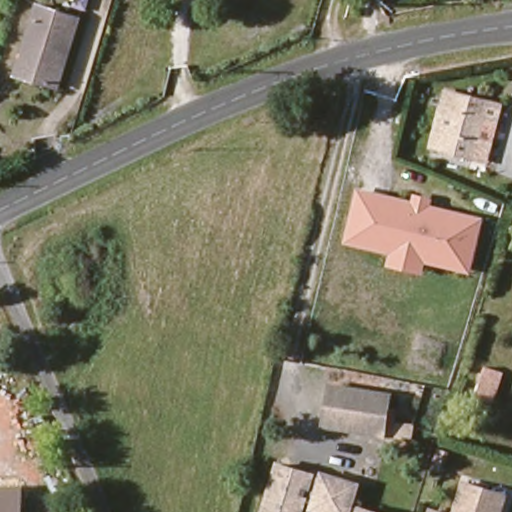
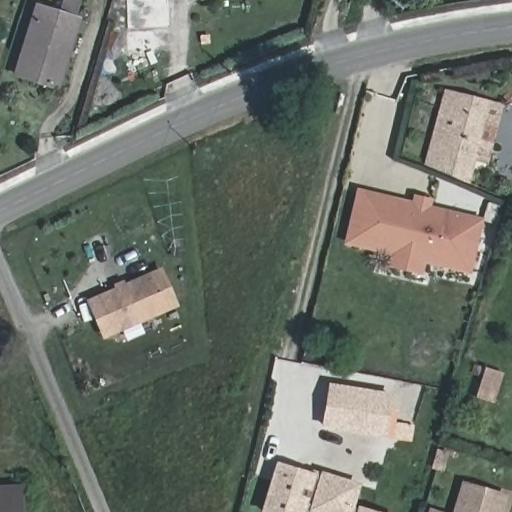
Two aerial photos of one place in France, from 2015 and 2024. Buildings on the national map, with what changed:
unchanged [(59,85),(17,71),(40,6),(81,19),(59,85)]
unchanged [(481,161),(469,158),(426,145),(442,86),(486,98),(498,101),(481,161)]
unchanged [(473,275),(426,264),(423,275),(387,268),(390,256),(346,245),(358,189),(413,202),(415,193),(436,199),(433,207),(486,219),(473,275)]
new [(163,269),(177,303),(107,334),(92,300),(163,269)]
unchanged [(494,406),(475,400),(486,367),(506,372),(494,406)]
unchanged [(382,434),(323,422),(331,383),(390,395),(387,409),(394,411),(389,436),(382,434)]
unchanged [(267,507),(283,461),(327,476),(328,473),(364,486),(357,506),(374,512),(282,512),(267,507)]
unchanged [(462,484),(501,496),(496,512),(455,512),(462,484)]
unchanged [(22,512),(0,512),(0,490),(22,489),(22,512)]

